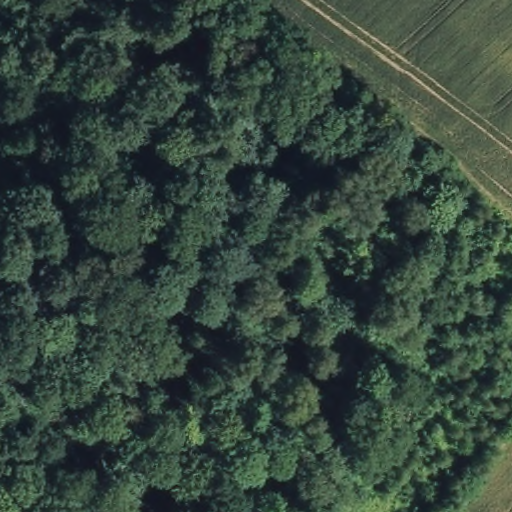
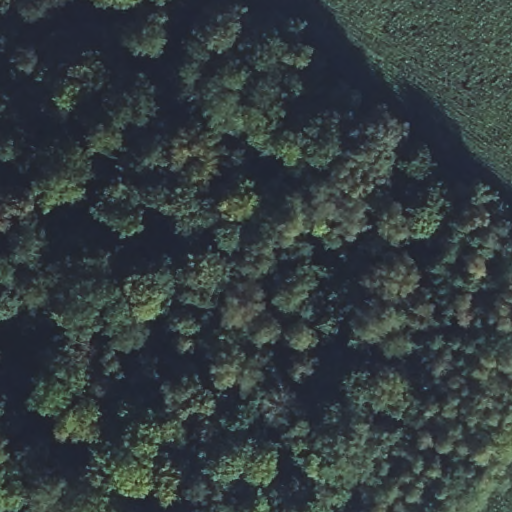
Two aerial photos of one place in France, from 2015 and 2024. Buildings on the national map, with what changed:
unchanged [(14,405),(0,395),(0,353),(37,379),(14,405)]

